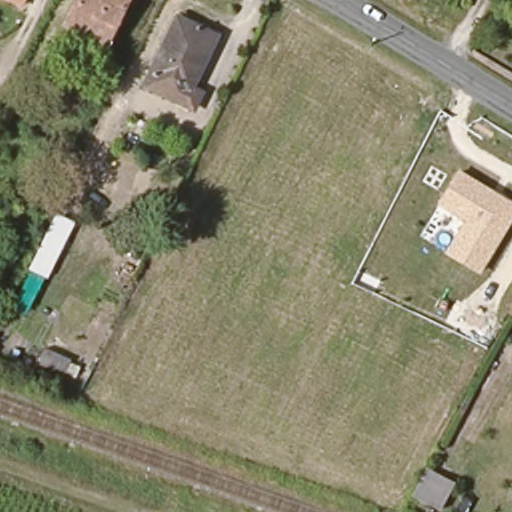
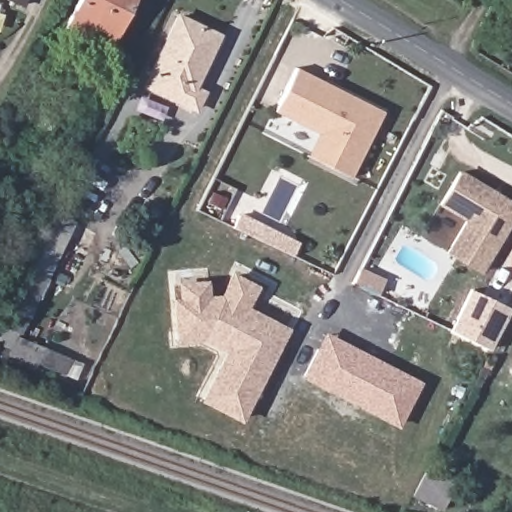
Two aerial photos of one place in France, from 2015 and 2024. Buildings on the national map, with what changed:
unchanged [(19,8),(4,0),(23,0),(19,8)]
unchanged [(106,45),(68,25),(80,0),(127,0),(106,45)]
unchanged [(196,79),(203,85),(193,104),(141,79),(173,11),(218,33),(196,79)]
new [(272,111),(293,68),(379,110),(348,174),(323,163),(305,154),(315,132),(333,140),(272,111)]
unchanged [(443,254),(462,221),(435,206),(456,169),(512,202),(512,224),(481,276),(443,254)]
unchanged [(48,227),(70,237),(49,279),(27,268),(48,227)]
new [(198,400),(222,352),(201,340),(174,342),(169,299),(175,299),(174,282),(207,279),(209,294),(219,294),(230,272),(258,285),(247,307),(288,328),(241,423),(198,400)]
new [(469,289),(510,308),(489,349),(449,330),(469,289)]
new [(360,355),(374,363),(376,360),(420,382),(398,422),(390,424),(301,379),(325,332),(360,355)]
unchanged [(424,466),(454,483),(440,507),(410,492),(424,466)]

